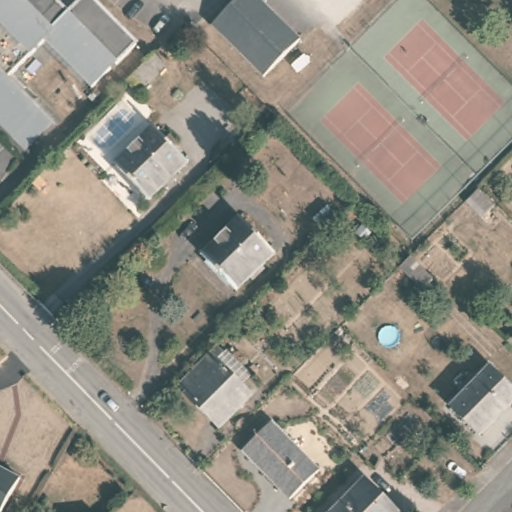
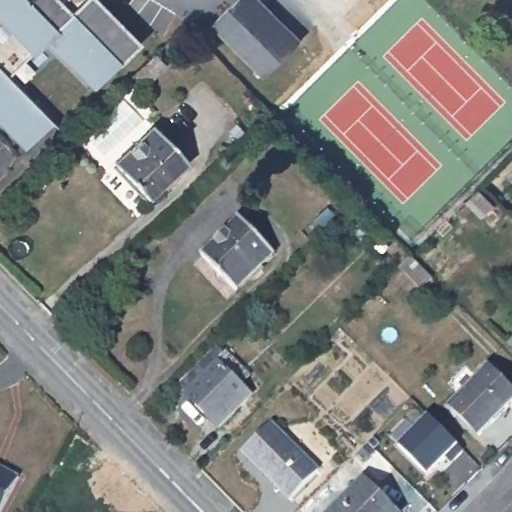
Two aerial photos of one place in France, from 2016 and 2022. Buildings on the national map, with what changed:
unchanged [(4,78),(10,85),(15,81),(52,119),(21,149),(11,139),(9,141),(0,132),(0,0),(45,0),(52,7),(60,0),(83,0),(130,48),(109,67),(104,62),(100,67),(104,71),(85,90),(39,43),(4,78)]
unchanged [(205,27),(233,0),(252,0),(293,42),(256,79),(205,27)]
unchanged [(158,70),(131,97),(119,86),(146,59),(158,70)]
unchanged [(149,125),(185,162),(146,199),(110,162),(149,125)]
unchanged [(495,198),(483,210),(467,195),(480,183),(495,198)]
unchanged [(195,258),(234,221),(268,257),(230,295),(195,258)]
unchanged [(418,287),(397,266),(408,254),(430,276),(418,287)]
unchanged [(512,338),(512,345),(508,342),(512,338)]
unchanged [(212,430),(177,394),(209,362),(244,398),(212,430)]
unchanged [(445,407),(483,367),(512,396),(512,398),(474,437),(445,407)]
new [(429,415),(465,450),(452,462),(446,457),(429,475),(400,446),(429,415)]
unchanged [(235,452),(263,426),(311,473),(283,501),(235,452)]
unchanged [(13,477),(0,500),(0,470),(13,477)]
unchanged [(390,512),(328,512),(359,481),(390,512)]

